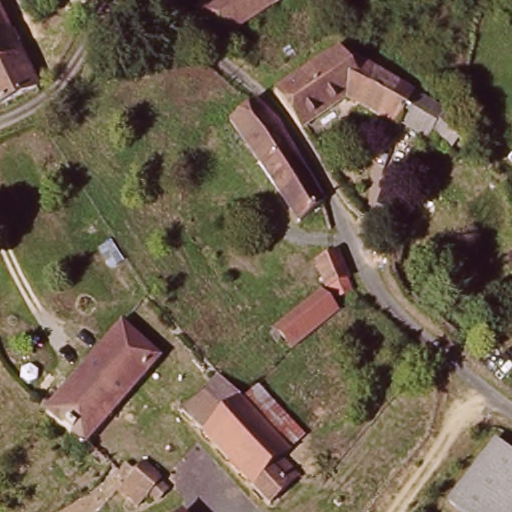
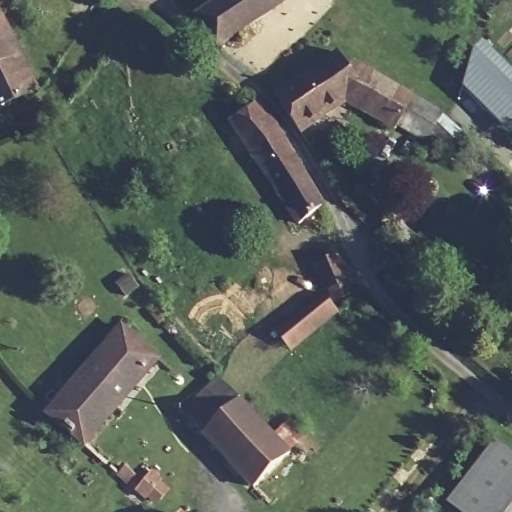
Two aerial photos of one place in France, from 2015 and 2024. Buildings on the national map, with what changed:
unchanged [(219,0),(288,0),(220,50),(193,19),(219,0)]
unchanged [(25,91),(0,103),(0,34),(25,91)]
new [(483,36),(512,67),(512,136),(460,85),(472,50),(483,36)]
unchanged [(347,77),(360,61),(440,112),(424,145),(395,127),(395,131),(347,104),(302,135),(270,92),(332,50),(347,77)]
unchanged [(320,211),(290,225),(232,126),(260,109),(285,138),(320,211)]
unchanged [(337,285),(339,299),(329,301),(325,287),(320,288),(313,263),(334,258),(340,283),(337,285)]
unchanged [(287,350),(277,339),(273,333),(314,298),(319,305),(329,315),(287,350)]
unchanged [(49,413),(123,331),(128,335),(155,361),(81,442),(49,413)]
unchanged [(202,378),(212,370),(237,397),(272,434),(287,420),(305,436),(288,450),(249,491),(180,410),(208,385),(202,378)]
unchanged [(452,503),(492,447),(512,459),(512,512),(464,512),(452,503)]
unchanged [(160,501),(154,496),(139,508),(119,488),(141,460),(163,478),(159,485),(167,493),(160,501)]

